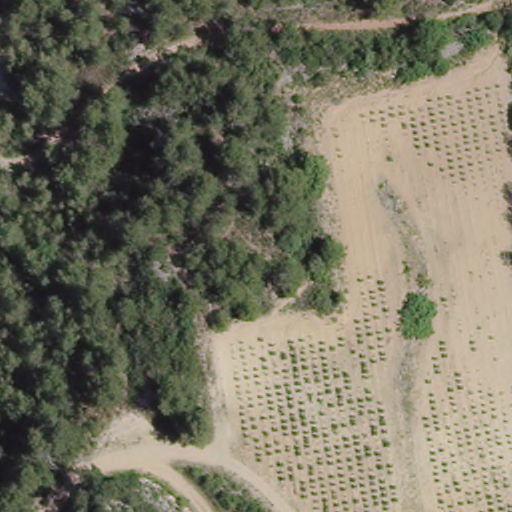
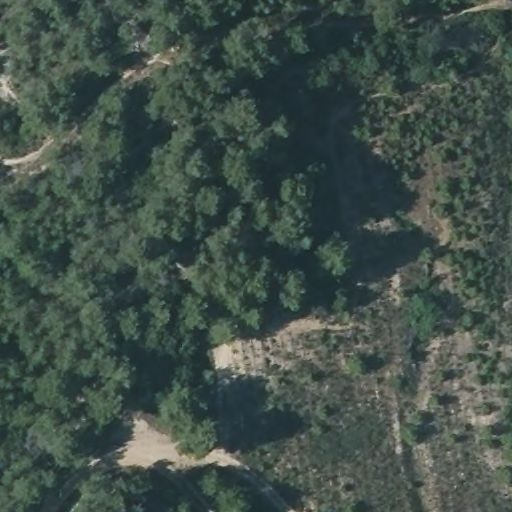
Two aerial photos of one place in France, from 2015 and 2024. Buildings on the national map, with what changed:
unchanged [(190,437),(170,435),(167,406),(188,403),(190,437)]

